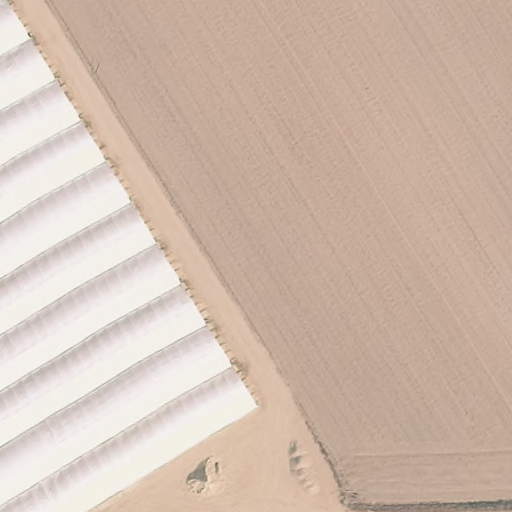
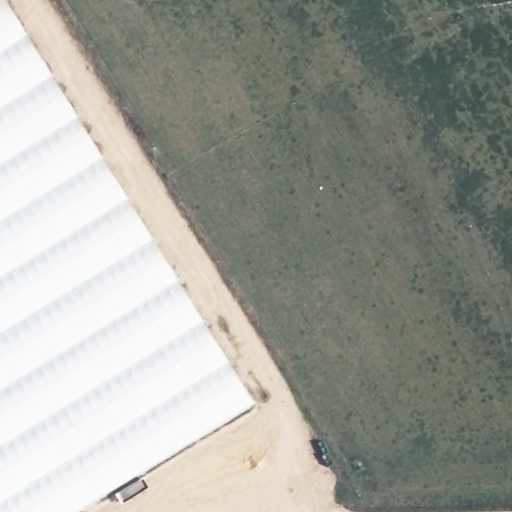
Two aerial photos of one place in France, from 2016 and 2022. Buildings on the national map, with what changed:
unchanged [(80,512),(0,512),(0,0),(7,0),(255,403),(80,512)]

